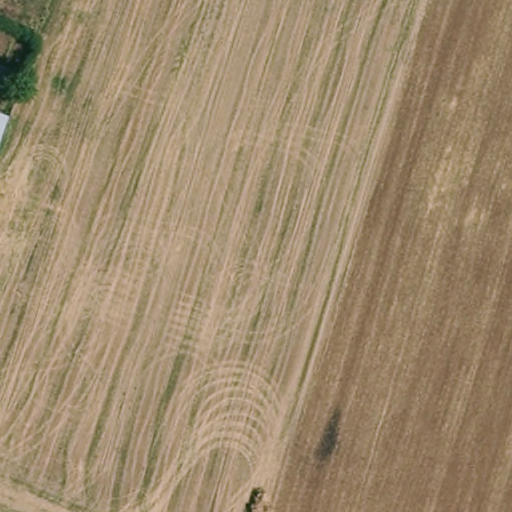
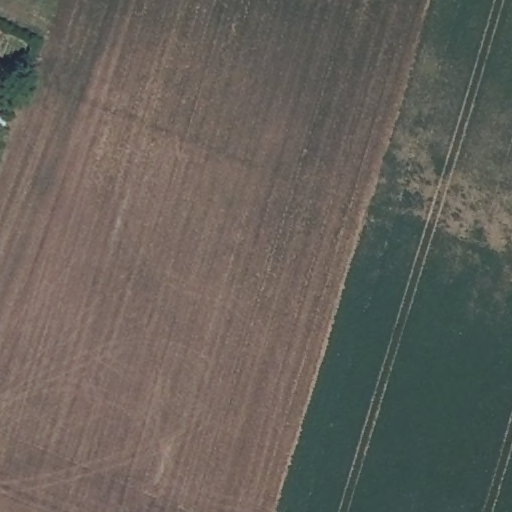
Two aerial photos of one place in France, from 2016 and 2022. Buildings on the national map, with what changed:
unchanged [(7,118),(0,142),(0,115),(7,118)]

